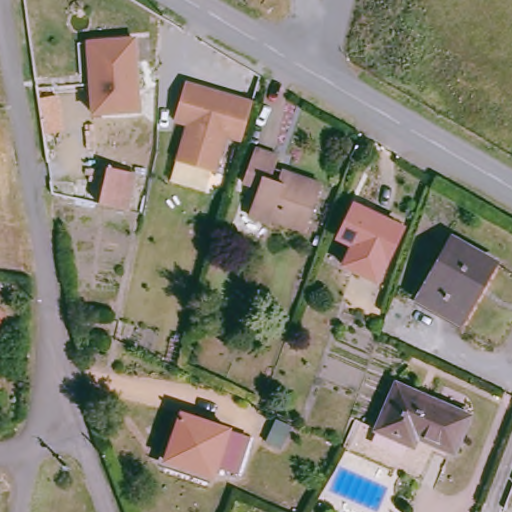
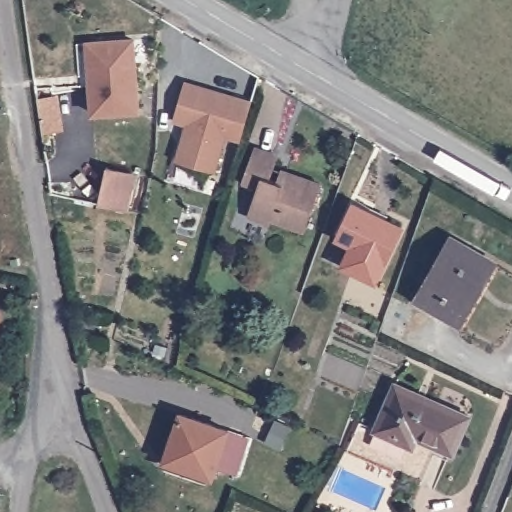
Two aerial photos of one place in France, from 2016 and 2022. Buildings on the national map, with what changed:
unchanged [(144,110),(98,113),(96,83),(93,40),(101,40),(140,39),(144,110)]
unchanged [(231,136),(220,173),(182,160),(188,138),(194,136),(196,132),(193,126),(179,120),(190,82),(257,104),(245,141),(231,136)]
unchanged [(275,156),(267,176),(278,181),(283,171),(317,184),(301,231),(268,218),(264,225),(245,215),(255,190),(240,182),(253,147),(275,156)]
unchanged [(113,165),(138,170),(129,209),(103,202),(113,165)]
unchanged [(396,226),(371,280),(340,265),(348,245),(335,238),(350,205),(396,226)]
unchanged [(500,257),(466,322),(421,298),(455,233),(500,257)]
unchanged [(0,315),(0,310),(2,310),(0,315)]
unchanged [(471,415),(455,452),(414,435),(410,443),(378,429),(400,382),(471,415)]
unchanged [(246,439),(231,478),(216,471),(213,477),(165,456),(182,411),(246,439)]
unchanged [(309,435),(299,456),(285,450),(295,427),(309,435)]

